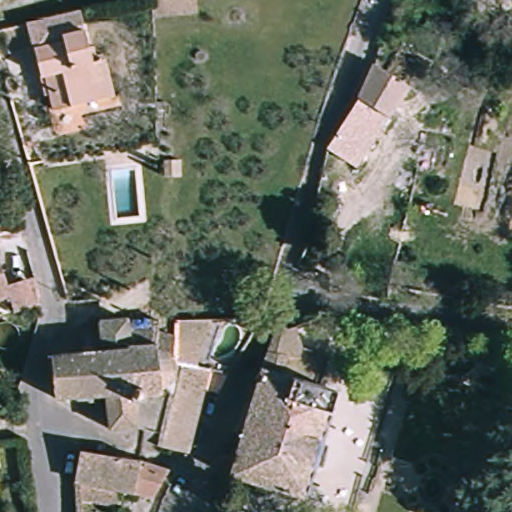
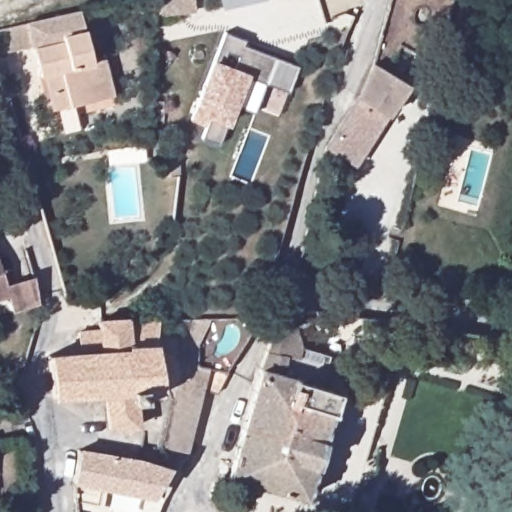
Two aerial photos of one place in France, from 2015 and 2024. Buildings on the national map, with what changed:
unchanged [(150,17),(150,0),(194,0),(195,11),(150,17)]
unchanged [(95,61),(107,58),(116,95),(57,110),(53,93),(48,94),(37,44),(12,50),(7,28),(31,22),(83,10),(95,61)]
new [(244,41),(241,47),(296,67),(286,92),(264,85),(253,112),(236,105),(227,127),(224,126),(216,145),(201,138),(206,126),(189,120),(191,113),(211,60),(214,61),(224,35),(244,41)]
unchanged [(408,85),(385,116),(353,165),(325,147),(356,96),(372,63),(408,85)]
unchanged [(178,159),(178,175),(163,175),(163,160),(178,159)]
unchanged [(43,302),(17,310),(12,296),(0,300),(0,258),(8,285),(38,276),(42,290),(43,302)]
unchanged [(332,312),(333,323),(320,325),(316,311),(332,312)]
unchanged [(169,378),(159,383),(158,385),(157,388),(152,390),(152,388),(141,389),(142,393),(133,394),(137,420),(108,423),(105,393),(92,395),(92,396),(87,396),(87,395),(75,395),(75,391),(53,392),(48,351),(70,348),(70,345),(79,343),(77,327),(98,324),(97,315),(125,312),(125,315),(126,320),(129,320),(128,315),(158,313),(156,325),(173,328),(173,357),(174,366),(174,368),(169,378)]
unchanged [(158,440),(167,404),(174,368),(174,366),(173,357),(173,328),(173,313),(207,312),(195,338),(194,360),(206,362),(233,366),(231,369),(228,369),(218,390),(202,385),(186,447),(158,440)]
unchanged [(232,458),(259,363),(272,330),(274,326),(281,320),(283,321),(285,322),(288,322),(289,322),(284,350),(307,355),(303,375),(337,385),(304,493),(228,470),(222,492),(209,491),(220,455),(232,458)]
unchanged [(73,496),(72,481),(77,450),(139,460),(168,468),(162,478),(152,496),(120,490),(118,505),(73,496)]

